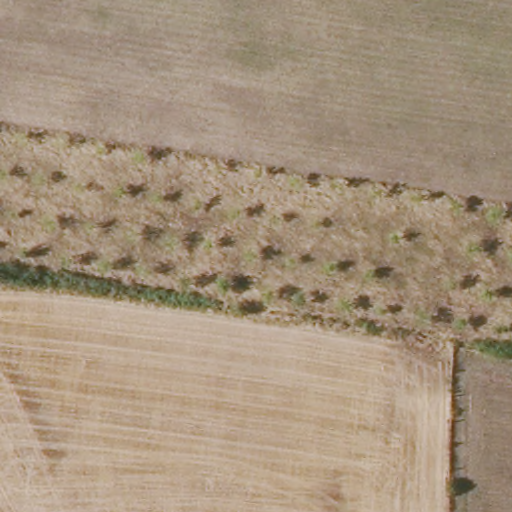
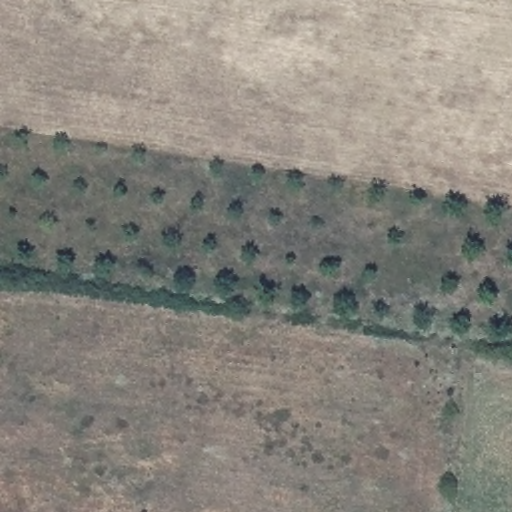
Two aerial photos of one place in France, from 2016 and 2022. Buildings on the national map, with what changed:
[]

